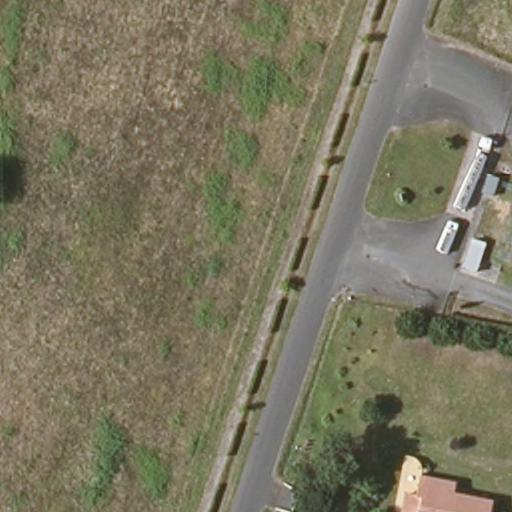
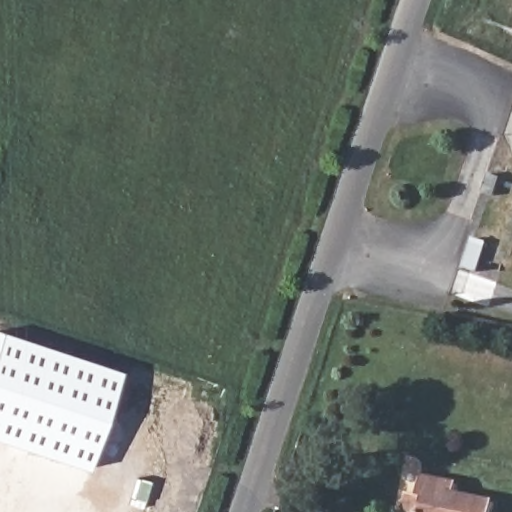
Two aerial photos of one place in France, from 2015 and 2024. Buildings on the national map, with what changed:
new [(85,470),(0,441),(0,332),(117,371),(85,470)]
unchanged [(417,497),(420,478),(454,484),(452,496),(491,504),(490,512),(407,512),(410,496),(417,497)]

